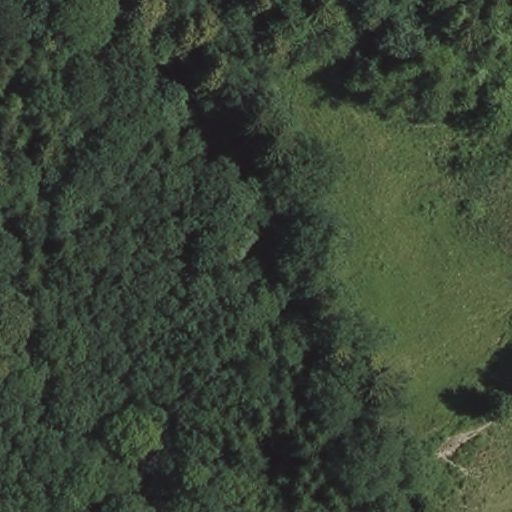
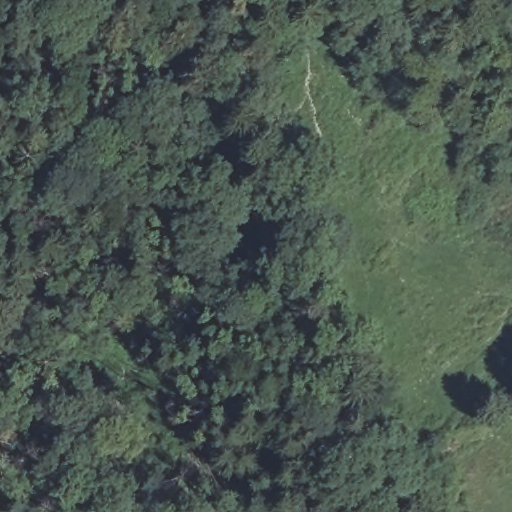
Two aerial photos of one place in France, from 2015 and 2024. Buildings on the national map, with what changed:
unchanged [(275,244),(292,281),(247,305),(229,267),(275,244)]

